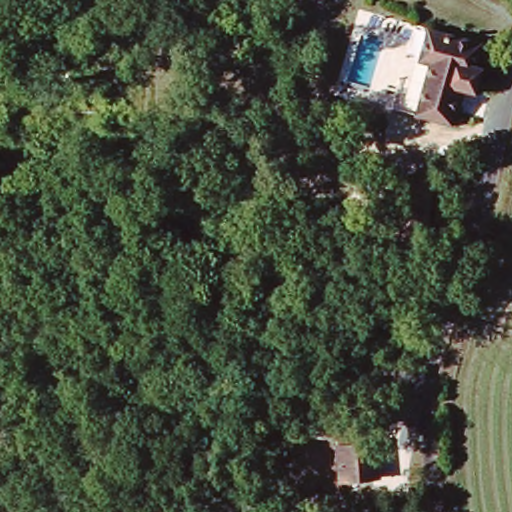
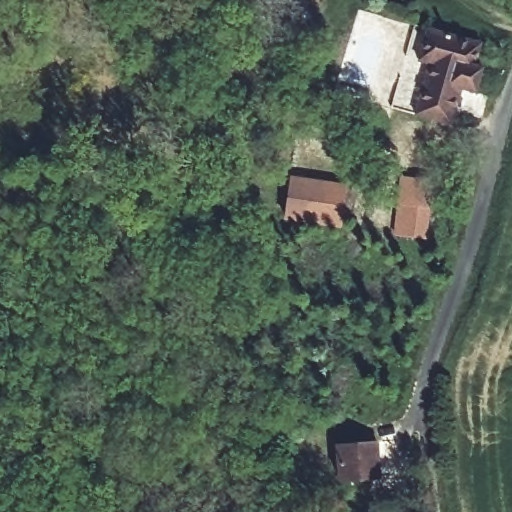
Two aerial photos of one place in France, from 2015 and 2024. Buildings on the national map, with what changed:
unchanged [(468,87),(456,123),(421,111),(438,62),(426,58),(437,27),(490,45),(484,65),(488,67),(479,91),(468,87)]
new [(399,174),(439,179),(429,240),(392,235),(399,174)]
new [(289,175),(349,183),(341,232),(282,223),(289,175)]
unchanged [(384,460),(376,460),(376,487),(346,488),(345,445),(384,443),(384,460)]

